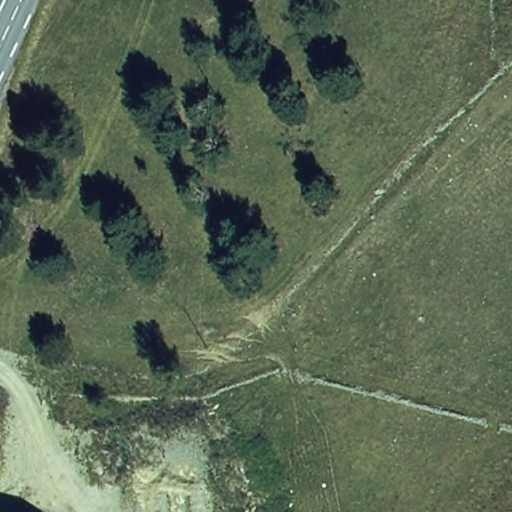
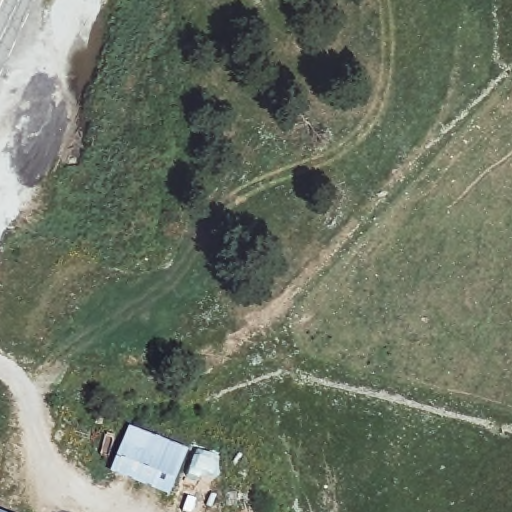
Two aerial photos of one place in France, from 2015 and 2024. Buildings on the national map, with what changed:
new [(187,453),(169,499),(109,474),(128,429),(187,453)]

